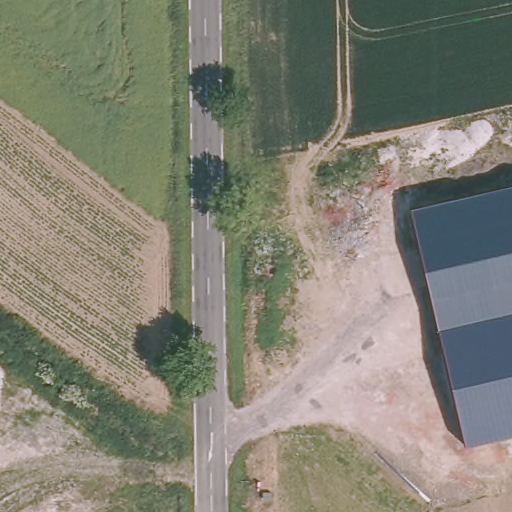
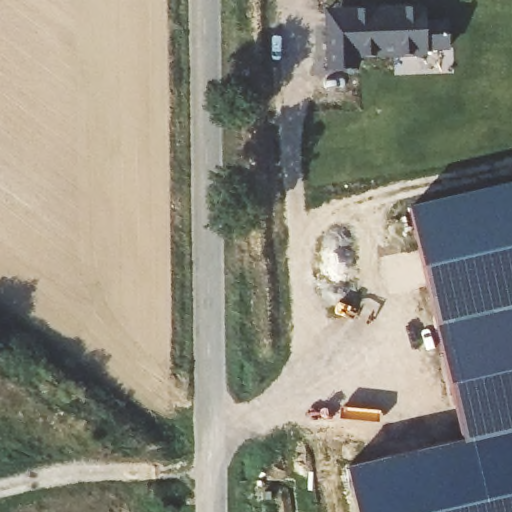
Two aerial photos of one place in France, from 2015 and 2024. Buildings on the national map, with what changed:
new [(447,22),(448,48),(426,49),(426,55),(356,57),(356,68),(328,69),(327,31),(326,11),(352,10),(425,7),(425,23),(447,22)]
unchanged [(464,444),(409,206),(512,181),(512,433),(464,444)]
new [(512,433),(512,512),(358,512),(347,467),(463,441),(464,444),(512,433)]
new [(262,492),(271,492),(271,500),(262,500),(262,492)]

